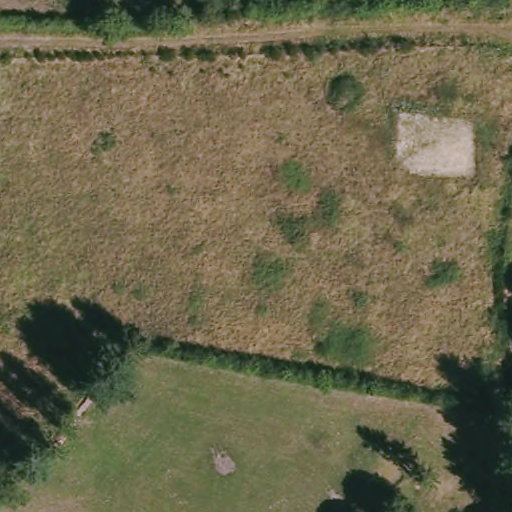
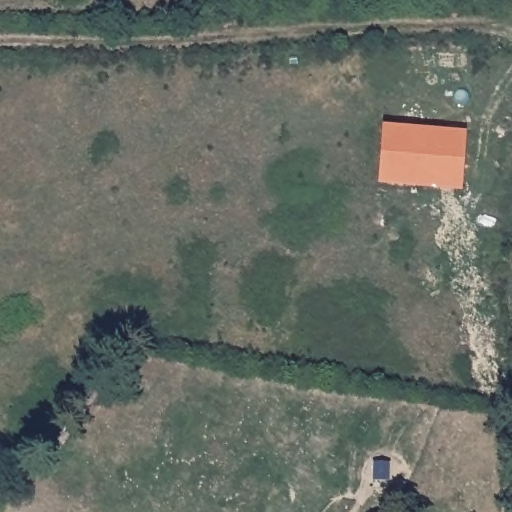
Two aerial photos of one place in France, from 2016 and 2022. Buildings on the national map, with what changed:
new [(380,187),(383,127),(467,132),(462,192),(380,187)]

